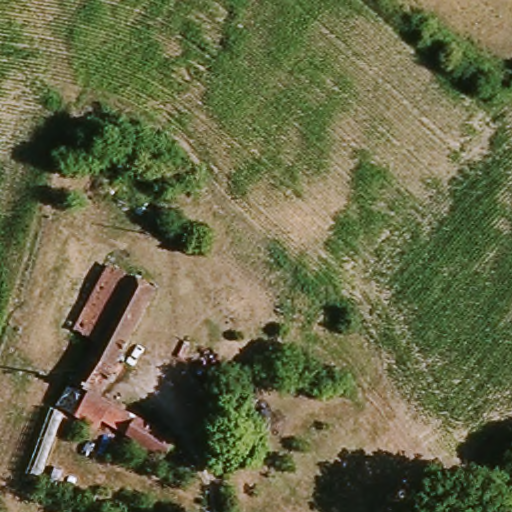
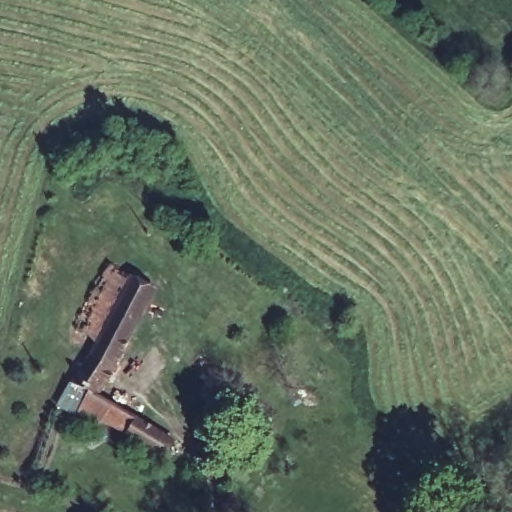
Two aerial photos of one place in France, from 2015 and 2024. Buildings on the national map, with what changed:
unchanged [(153,287),(100,388),(171,436),(151,461),(116,440),(120,429),(97,418),(91,423),(72,411),(80,388),(67,377),(88,335),(70,326),(105,260),(153,287)]

